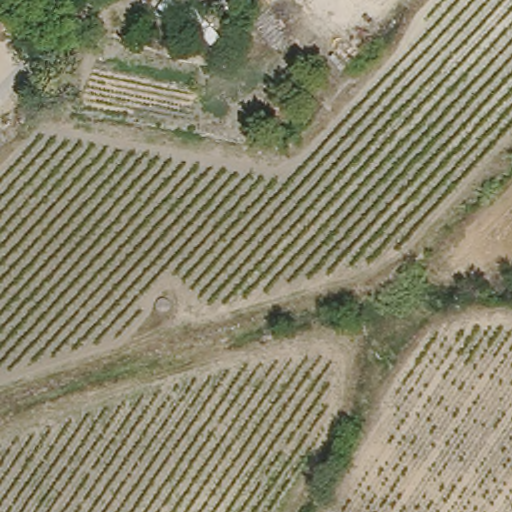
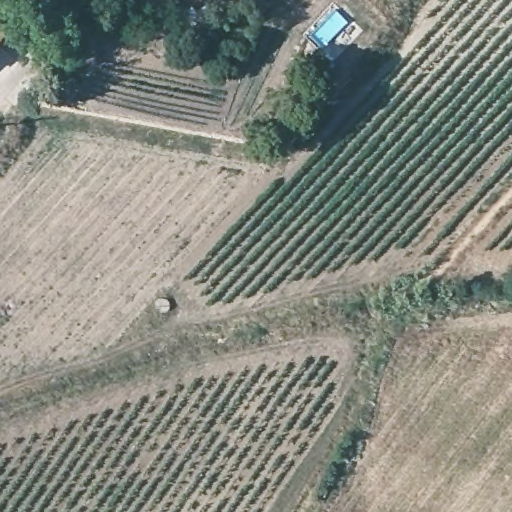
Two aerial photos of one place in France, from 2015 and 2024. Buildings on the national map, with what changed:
unchanged [(12,38),(3,32),(0,36),(0,21),(10,10),(25,21),(12,38)]
unchanged [(174,296),(177,309),(163,311),(161,296),(174,296)]

